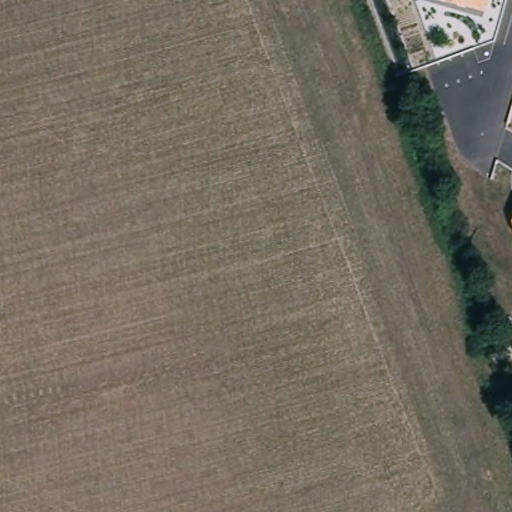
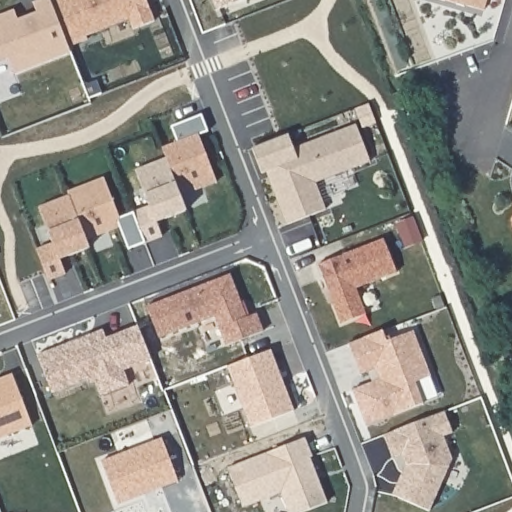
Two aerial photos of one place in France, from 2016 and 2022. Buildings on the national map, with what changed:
new [(14,11),(17,20),(36,13),(32,3),(41,0),(50,0),(67,47),(70,52),(14,74),(7,59),(0,62),(0,16),(14,11)]
new [(154,22),(132,30),(129,19),(85,36),(86,40),(67,47),(50,0),(145,0),(154,22)]
new [(215,11),(211,0),(243,0),(215,11)]
unchanged [(483,9),(441,0),(486,0),(483,9)]
new [(177,143),(171,127),(201,115),(207,132),(198,135),(216,182),(180,196),(166,160),(162,149),(177,143)]
new [(287,135),(293,150),(356,125),(368,162),(315,183),(325,211),(286,225),(266,172),(261,174),(252,149),(287,135)]
new [(149,207),(135,171),(166,160),(180,196),(186,211),(156,222),(161,237),(145,243),(133,214),(149,207)]
new [(101,180),(117,220),(133,214),(145,243),(127,250),(119,227),(86,240),(69,197),(67,192),(101,180)]
new [(52,244),(39,208),(69,197),(86,240),(89,248),(59,260),(65,274),(48,281),(37,251),(52,244)]
unchanged [(512,218),(512,224),(511,220),(512,218)]
new [(317,265),(383,240),(396,272),(355,288),(365,315),(341,324),(332,304),(328,293),(317,265)]
new [(240,302),(243,302),(249,317),(256,314),(263,332),(226,346),(214,317),(159,338),(147,307),(230,275),(240,302)]
new [(103,330),(106,338),(138,326),(151,360),(123,371),(129,386),(100,397),(94,382),(88,384),(87,380),(52,393),(37,356),(90,335),(103,330)]
new [(387,342),(413,332),(430,377),(415,383),(423,404),(366,426),(352,391),(372,383),(367,372),(360,375),(348,345),(382,331),(387,342)]
new [(271,350),(295,411),(251,427),(227,367),(271,350)]
new [(12,375),(32,426),(0,438),(0,379),(12,375)]
new [(392,458),(383,436),(443,412),(452,433),(442,437),(451,460),(428,512),(392,495),(402,473),(395,457),(392,458)]
new [(161,438),(178,482),(117,505),(100,462),(161,438)]
new [(311,457),(308,458),(326,503),(304,512),(287,512),(280,493),(242,508),(227,468),(304,439),(311,457)]

